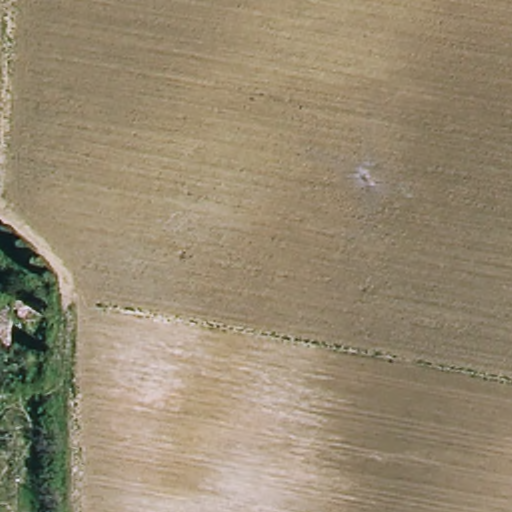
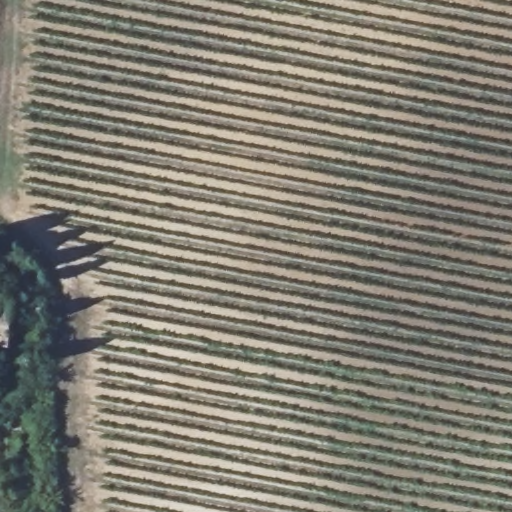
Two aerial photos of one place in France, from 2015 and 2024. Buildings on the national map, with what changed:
unchanged [(9,349),(0,349),(0,308),(13,308),(9,349)]

